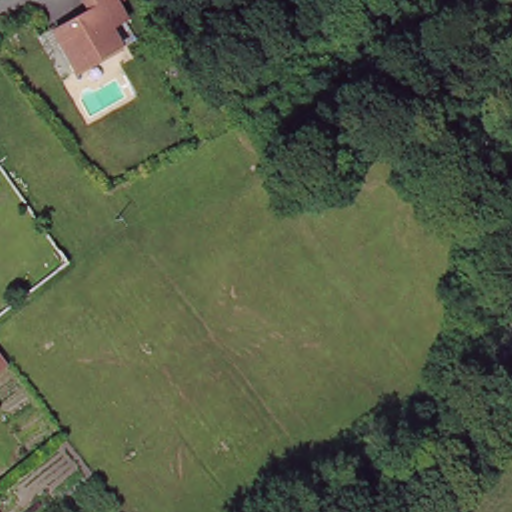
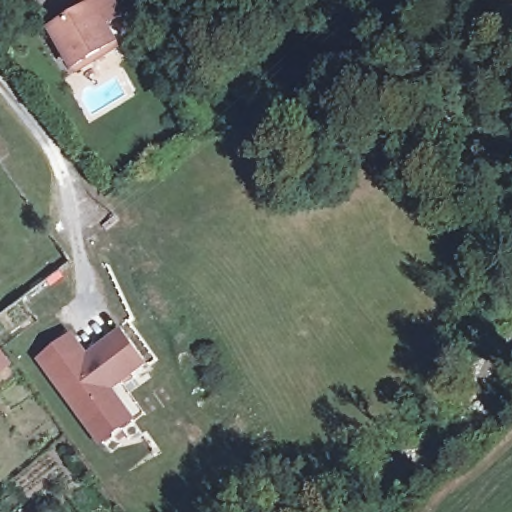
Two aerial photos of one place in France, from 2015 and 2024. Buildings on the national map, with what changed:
unchanged [(55,48),(48,36),(85,15),(76,2),(80,0),(107,0),(108,2),(119,22),(103,31),(116,52),(72,77),(55,48)]
new [(103,442),(96,433),(45,362),(73,340),(89,361),(96,356),(123,336),(145,365),(110,390),(126,412),(132,421),(103,442)]
new [(5,365),(0,369),(0,358),(5,365)]

